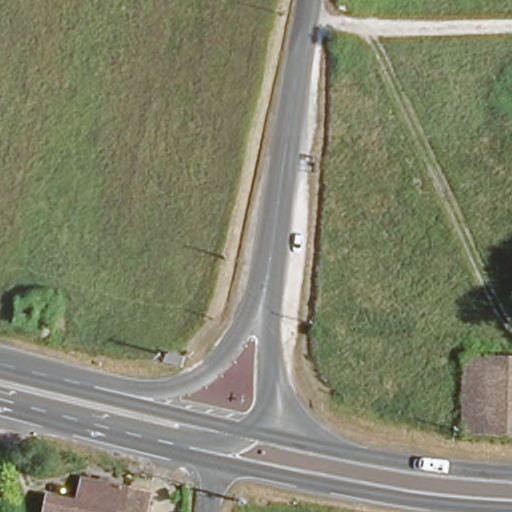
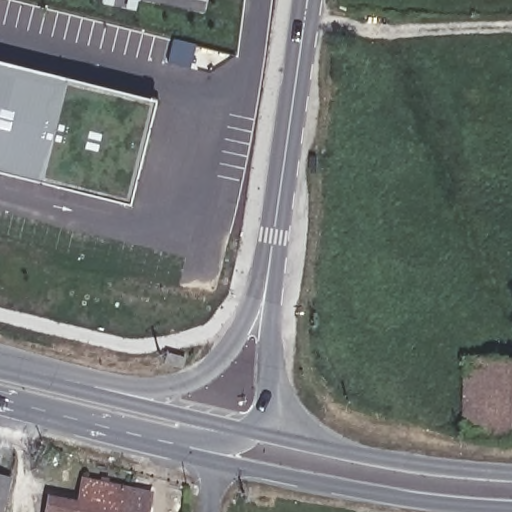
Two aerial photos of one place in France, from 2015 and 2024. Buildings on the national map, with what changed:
new [(196,45),(190,67),(168,62),(174,39),(196,45)]
new [(128,202),(0,171),(0,63),(153,102),(128,202)]
demolished [(59,302),(55,327),(15,318),(20,293),(59,302)]
unchanged [(166,366),(167,362),(169,352),(183,354),(177,367),(166,366)]
unchanged [(461,410),(465,352),(512,355),(512,431),(460,427),(461,410)]
demolished [(178,370),(179,366),(180,356),(195,358),(189,371),(178,370)]
unchanged [(9,491),(3,512),(1,512),(0,512),(0,470),(13,473),(9,491)]
unchanged [(79,491),(123,500),(121,512),(75,512),(79,491)]
unchanged [(145,504),(143,512),(121,512),(123,500),(145,504)]
unchanged [(43,510),(54,512),(43,512),(43,510)]

